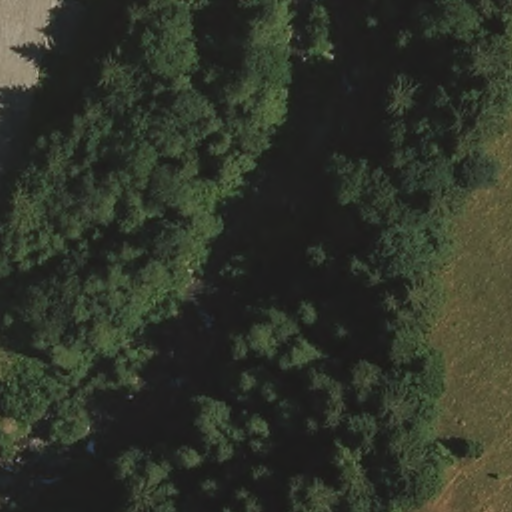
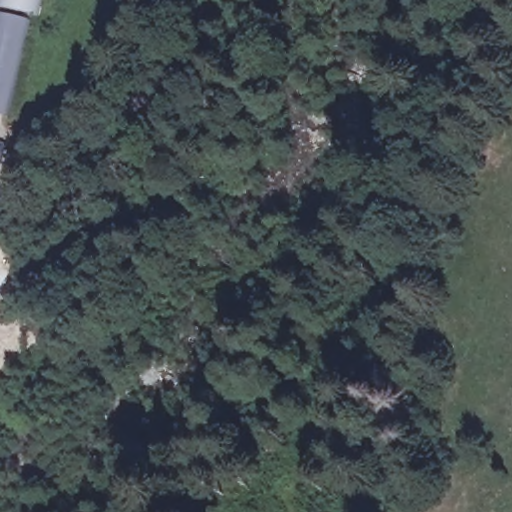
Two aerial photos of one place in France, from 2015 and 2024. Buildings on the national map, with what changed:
new [(0,6),(0,0),(38,0),(34,14),(0,6)]
new [(0,115),(0,14),(28,20),(4,116),(0,115)]

